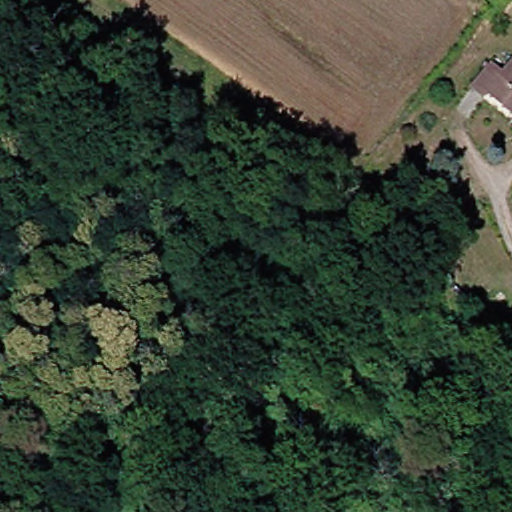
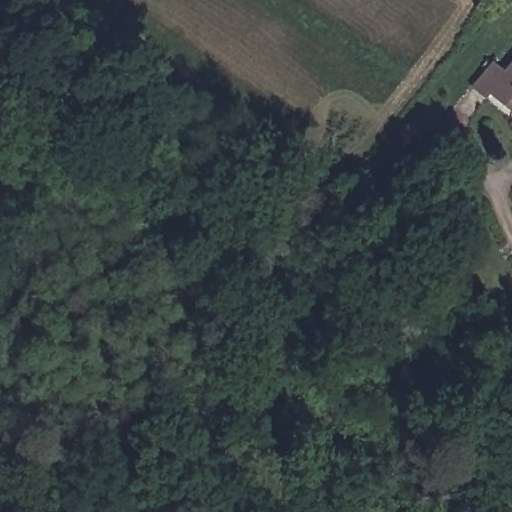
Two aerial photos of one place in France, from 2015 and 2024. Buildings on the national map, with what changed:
unchanged [(512,64),(512,116),(487,97),(482,103),(468,93),(490,66),(502,76),(512,64)]

